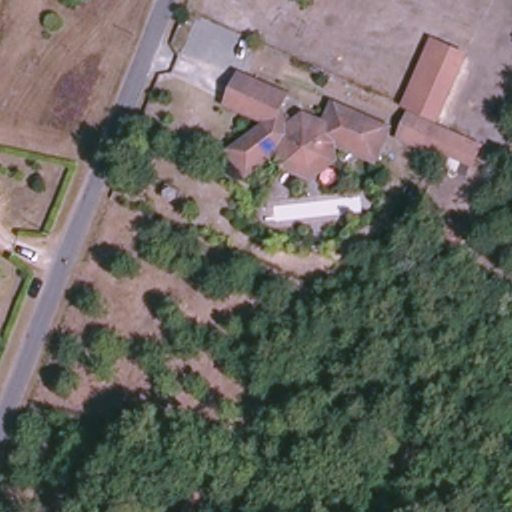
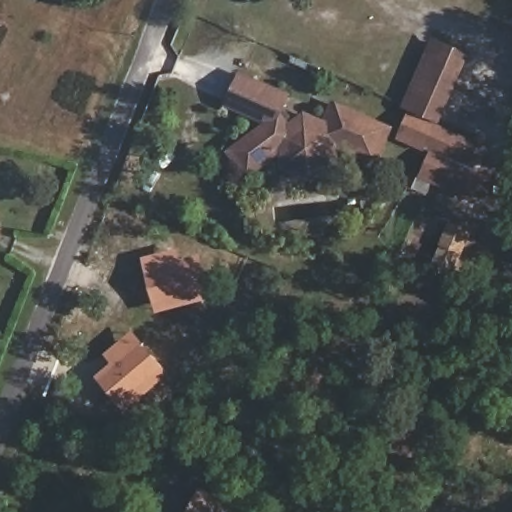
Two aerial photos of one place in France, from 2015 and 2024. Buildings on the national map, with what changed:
unchanged [(402,105),(432,35),(473,53),(442,122),(402,105)]
unchanged [(375,166),(334,147),(336,164),(307,181),(280,167),(278,154),(244,180),(224,151),(262,124),(224,106),(238,71),(287,91),(281,111),(287,122),(303,111),(323,121),(329,100),(391,127),(375,166)]
unchanged [(480,144),(472,168),(423,146),(421,150),(394,139),(406,112),(480,144)]
new [(143,258),(179,249),(182,257),(199,255),(209,300),(157,313),(143,258)]
new [(125,411),(95,376),(111,363),(106,356),(135,332),(170,373),(125,411)]
unchanged [(219,512),(188,512),(192,500),(199,502),(205,488),(226,496),(219,512)]

